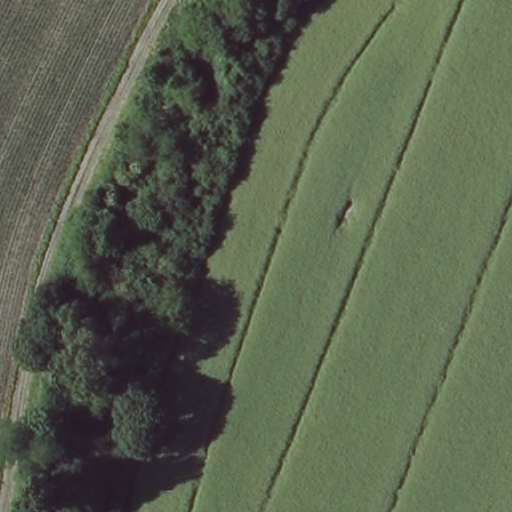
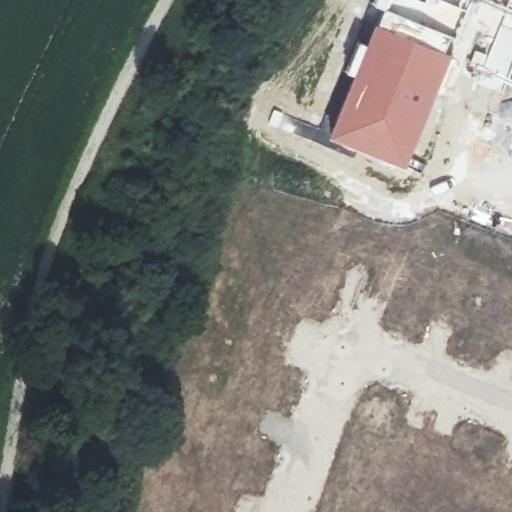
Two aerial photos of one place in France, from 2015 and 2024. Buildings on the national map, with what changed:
new [(361,41),(363,42),(373,21),(448,52),(427,106),(401,167),(326,135),(361,41)]

